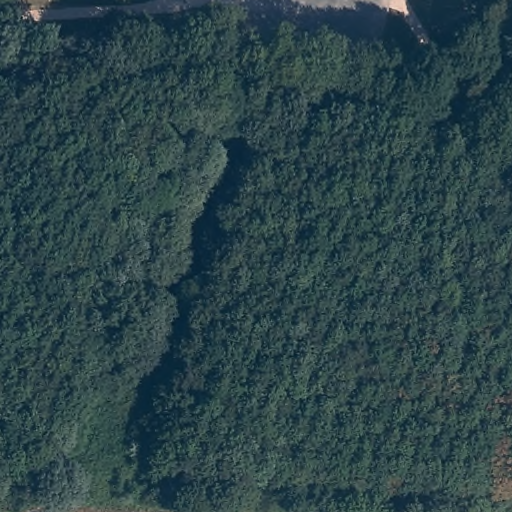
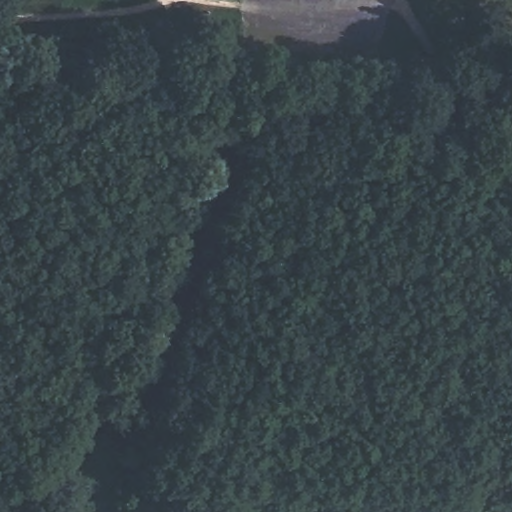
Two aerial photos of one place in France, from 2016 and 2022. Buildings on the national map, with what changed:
[]

